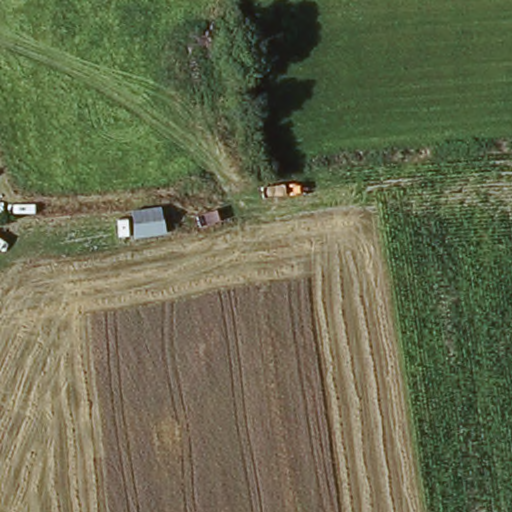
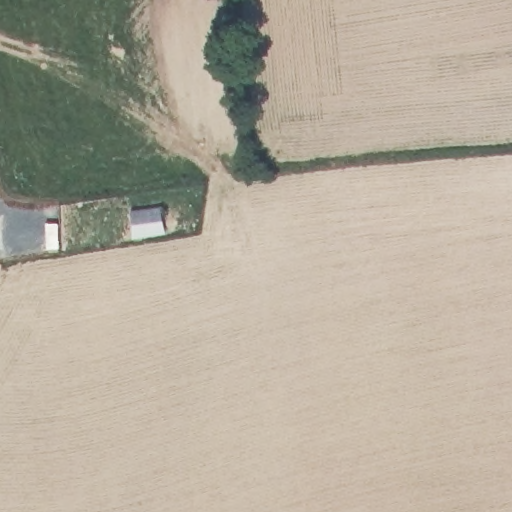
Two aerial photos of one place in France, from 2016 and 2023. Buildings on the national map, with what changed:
unchanged [(133,240),(132,216),(162,215),(165,225),(167,240),(160,240),(133,240)]

